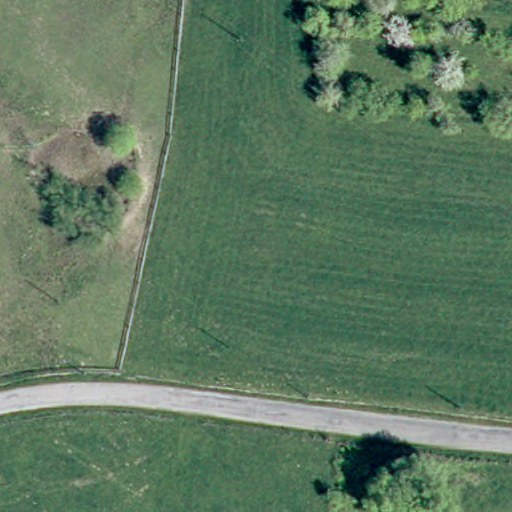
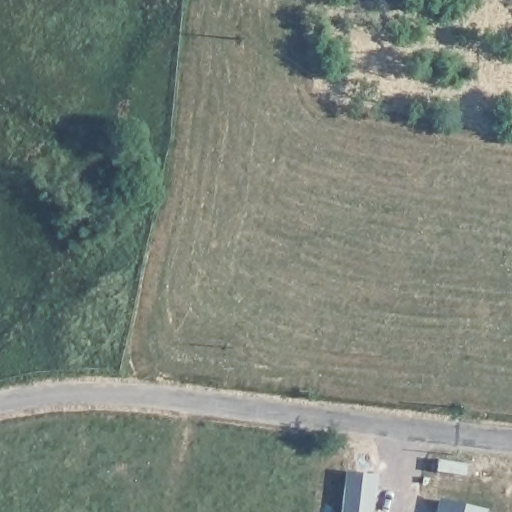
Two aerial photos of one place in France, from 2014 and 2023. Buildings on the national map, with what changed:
new [(374,477),(370,512),(343,512),(347,473),(374,477)]
new [(477,512),(436,512),(438,503),(477,512)]

